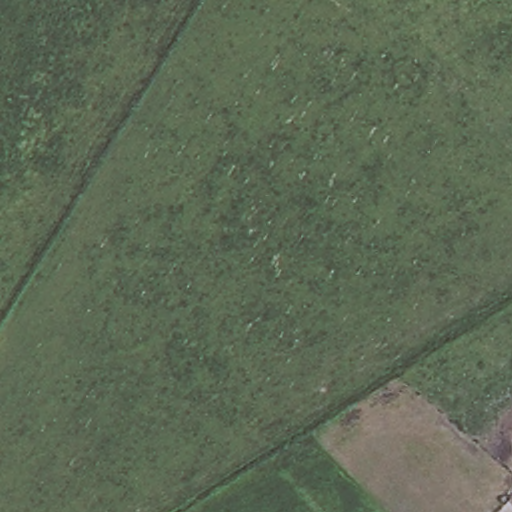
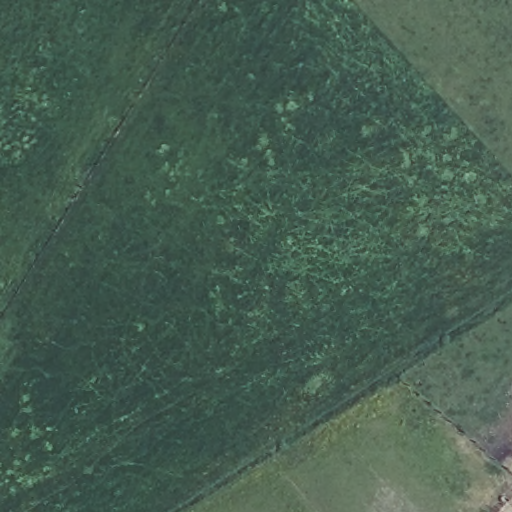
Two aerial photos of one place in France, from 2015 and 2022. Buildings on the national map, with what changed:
[]

